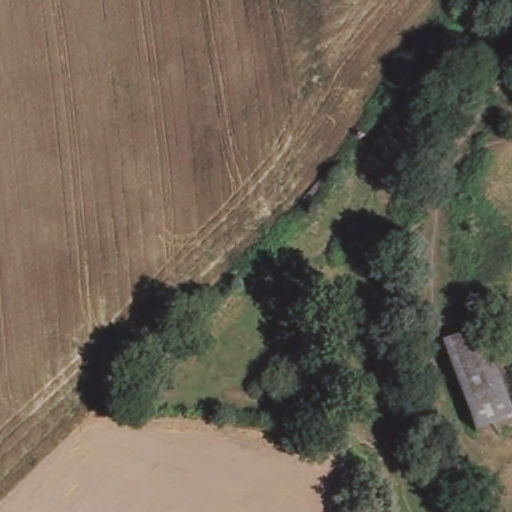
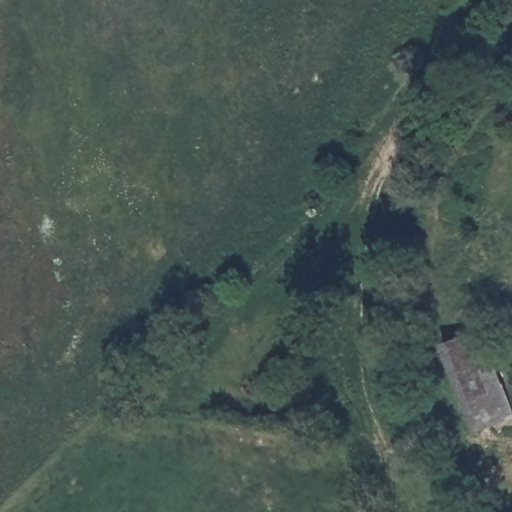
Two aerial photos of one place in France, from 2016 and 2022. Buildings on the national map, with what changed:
unchanged [(512,416),(512,419),(473,434),(438,342),(478,328),(512,416)]

